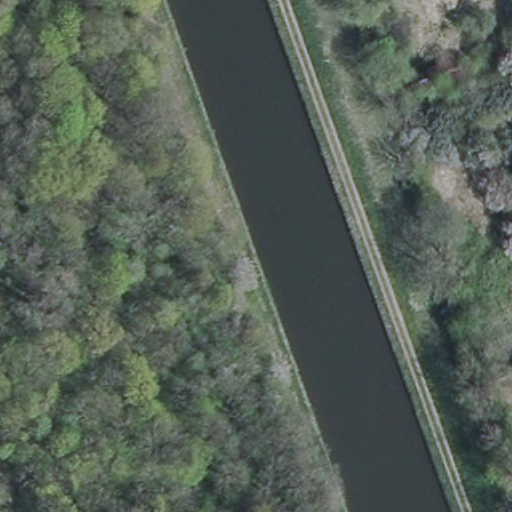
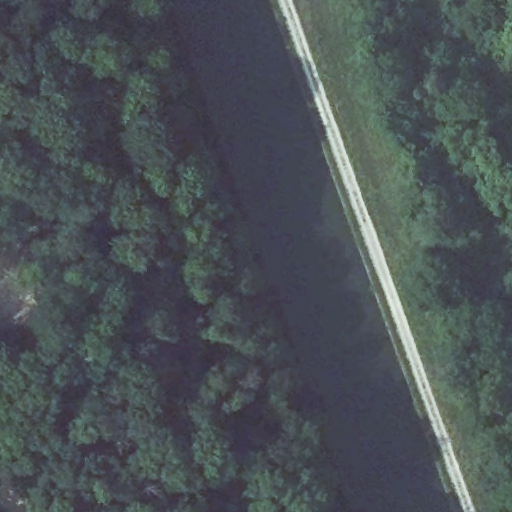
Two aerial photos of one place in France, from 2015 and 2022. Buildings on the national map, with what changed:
unchanged [(465,73),(410,91),(405,73),(430,65),(459,55),(465,73)]

